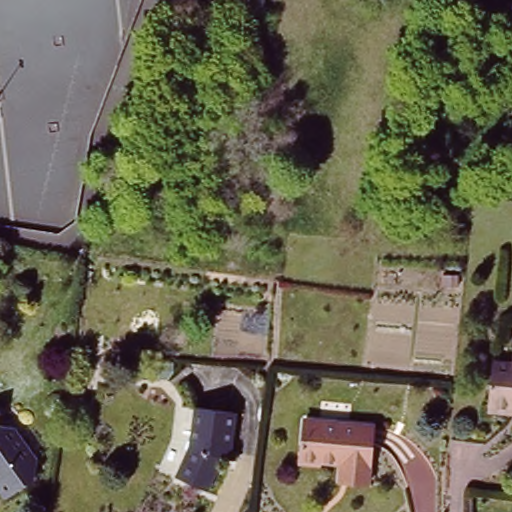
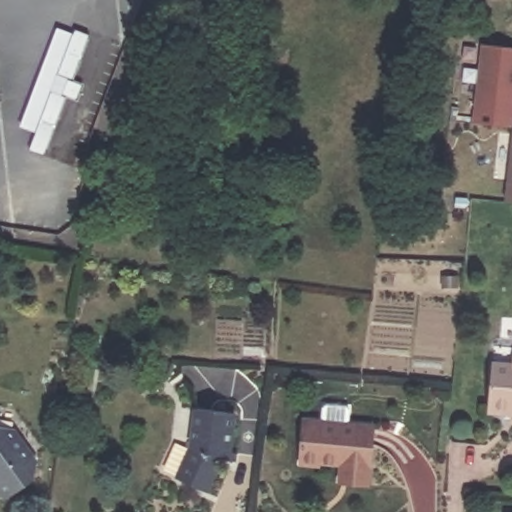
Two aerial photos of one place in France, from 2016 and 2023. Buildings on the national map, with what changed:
new [(482,45),(512,49),(512,129),(472,124),(482,45)]
new [(512,150),(512,204),(506,203),(512,150)]
unchanged [(482,419),(476,364),(506,367),(507,353),(512,354),(512,420),(482,419)]
unchanged [(233,466),(226,465),(219,464),(203,497),(174,482),(189,451),(193,412),(231,416),(227,454),(234,455),(233,466)]
unchanged [(347,465),(319,462),(319,465),(301,463),(305,420),(353,424),(347,465)]
unchanged [(31,473),(2,495),(0,493),(0,424),(7,425),(33,460),(31,473)]
unchanged [(348,481),(349,475),(346,475),(347,465),(353,424),(372,426),(367,478),(367,484),(348,481)]

